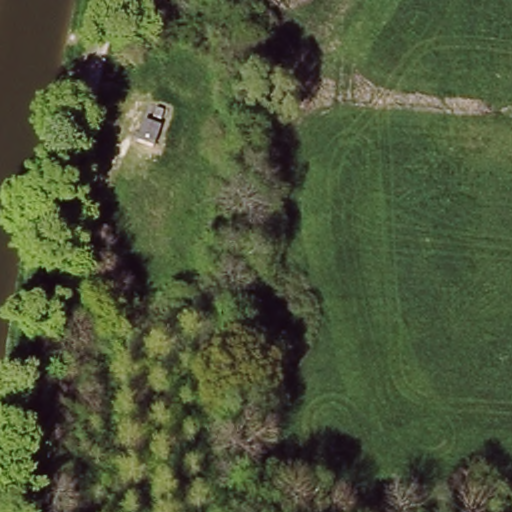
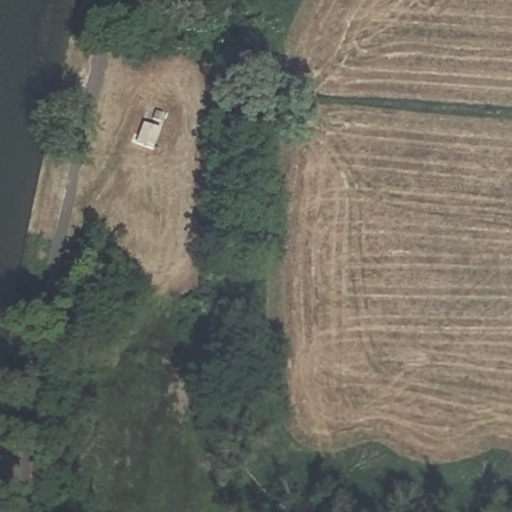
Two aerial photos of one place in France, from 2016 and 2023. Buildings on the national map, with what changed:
unchanged [(153,119),(167,122),(162,140),(148,136),(153,119)]

